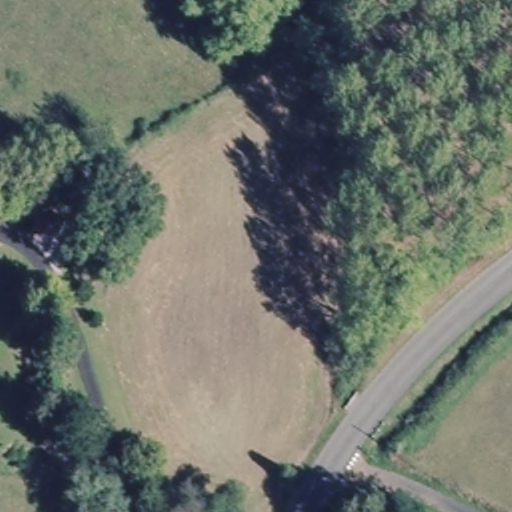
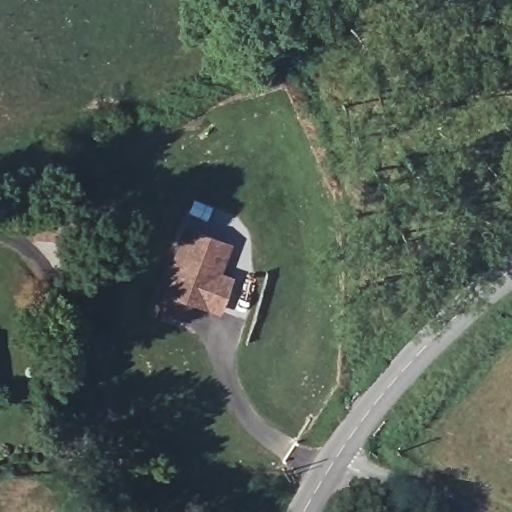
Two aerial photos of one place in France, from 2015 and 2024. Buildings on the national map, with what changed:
unchanged [(68,235),(32,235),(32,205),(69,208),(68,235)]
new [(230,242),(220,273),(232,276),(221,312),(191,303),(186,321),(154,311),(183,225),(230,242)]

